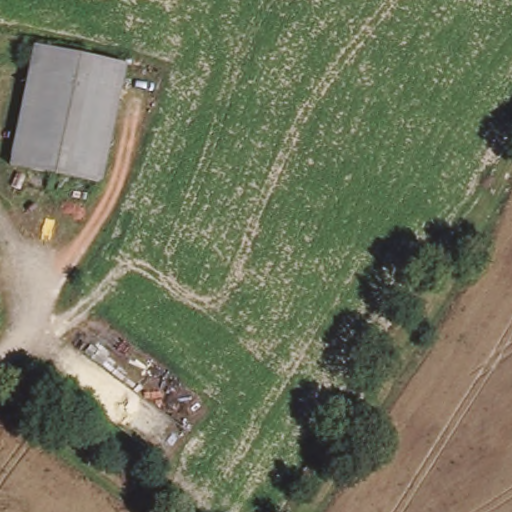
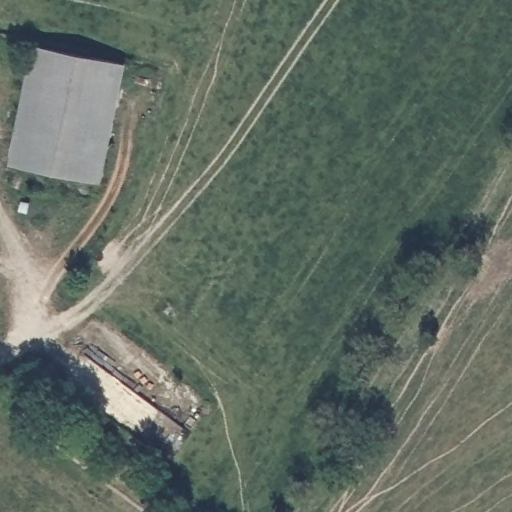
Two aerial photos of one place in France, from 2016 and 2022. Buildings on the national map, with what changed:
unchanged [(46,50),(114,64),(87,183),(20,170),(46,50)]
unchanged [(7,145),(17,146),(15,158),(4,156),(7,145)]

